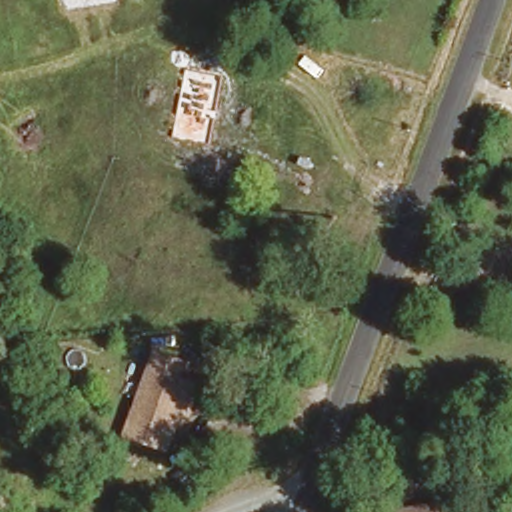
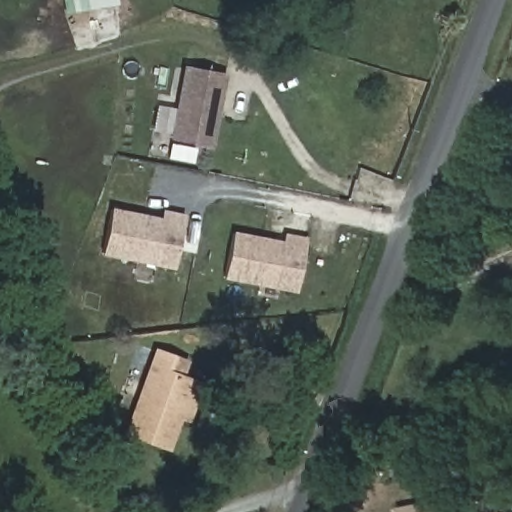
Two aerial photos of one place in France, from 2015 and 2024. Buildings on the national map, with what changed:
new [(66,13),(64,0),(117,0),(118,4),(66,13)]
new [(170,138),(184,66),(227,73),(214,147),(170,138)]
new [(175,269),(102,254),(111,207),(160,217),(162,210),(185,214),(175,269)]
new [(297,291),(224,279),(233,231),(283,240),(285,233),(307,238),(297,291)]
unchanged [(179,376),(192,378),(183,414),(172,411),(166,441),(124,433),(142,350),(169,355),(165,373),(179,376)]
unchanged [(433,512),(392,512),(391,508),(430,498),(433,512)]

